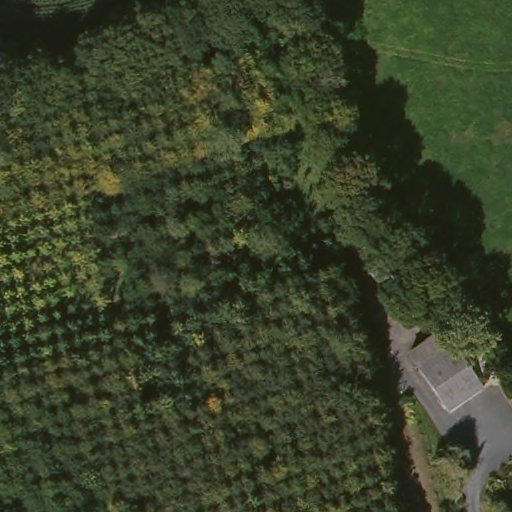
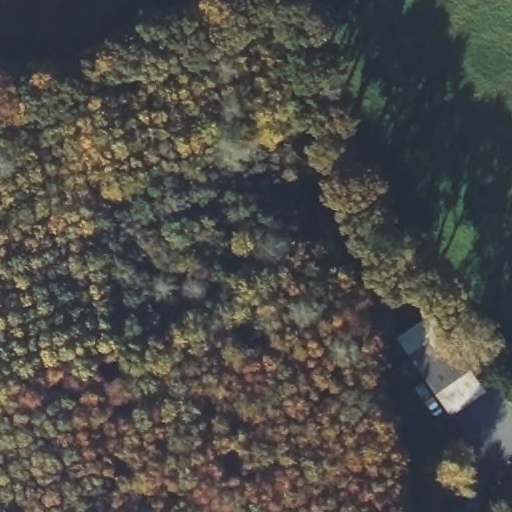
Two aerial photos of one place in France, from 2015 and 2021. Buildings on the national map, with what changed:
unchanged [(487,383),(459,410),(458,409),(412,361),(443,335),(487,383)]

